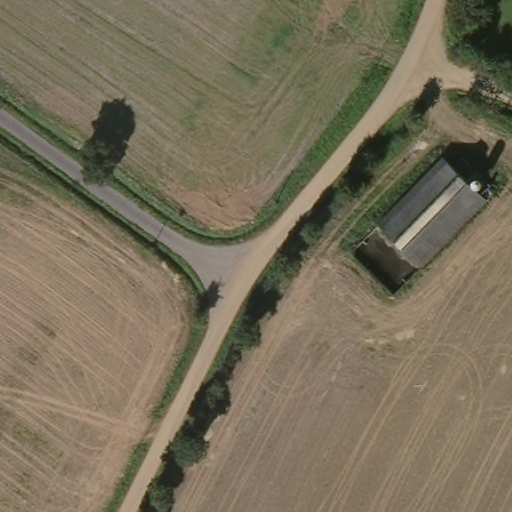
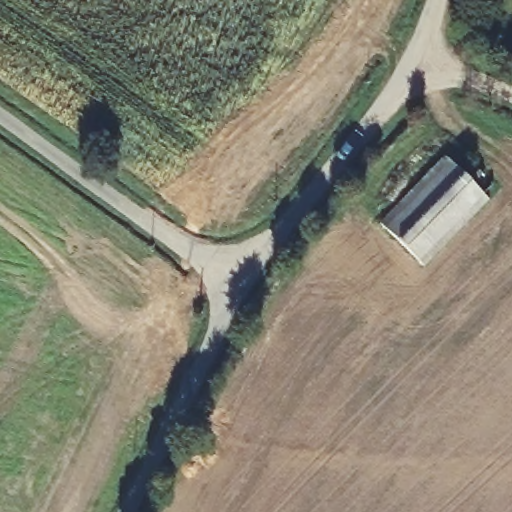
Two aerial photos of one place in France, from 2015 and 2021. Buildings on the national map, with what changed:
unchanged [(450,160),(478,186),(487,177),(497,187),(490,195),(495,199),(432,269),(385,229),(450,160)]

